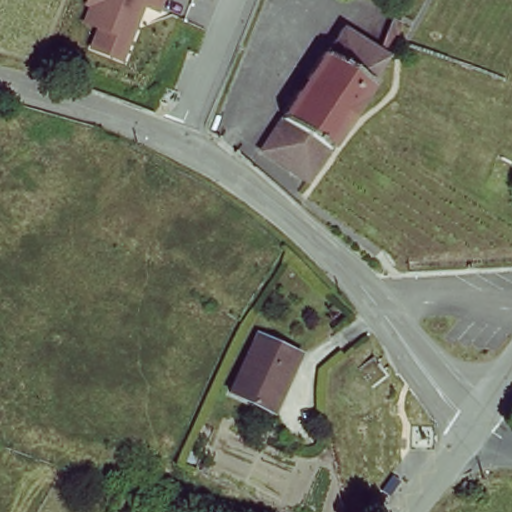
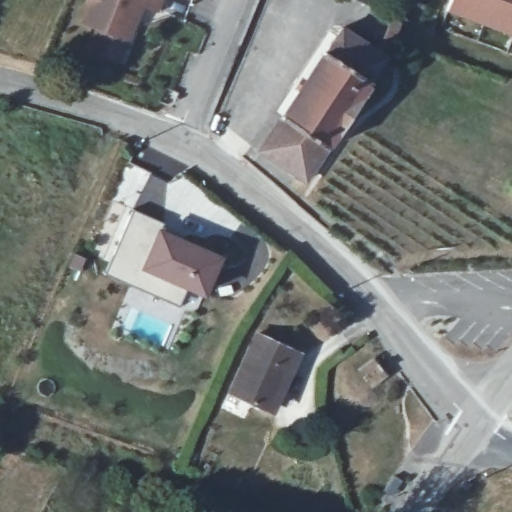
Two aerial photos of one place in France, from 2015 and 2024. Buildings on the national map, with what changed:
unchanged [(87,51),(95,24),(83,21),(92,0),(166,0),(161,14),(147,12),(127,64),(87,51)]
new [(496,24),(490,21),(472,15),(454,9),(457,0),(512,0),(512,30),(510,29),(496,24)]
unchanged [(334,43),(346,24),(381,48),(396,15),(404,19),(397,34),(396,36),(390,53),(365,94),(330,145),(330,144),(285,114),(330,46),(334,43)]
unchanged [(330,144),(310,176),(262,146),(265,143),(267,139),(285,114),(330,144)]
new [(165,227),(162,231),(184,240),(181,245),(201,254),(200,257),(218,264),(203,299),(187,292),(179,312),(151,299),(160,279),(113,258),(133,213),(165,227)]
new [(113,258),(160,279),(151,299),(104,278),(113,258)]
unchanged [(261,333),(302,352),(273,412),(233,393),(261,333)]

